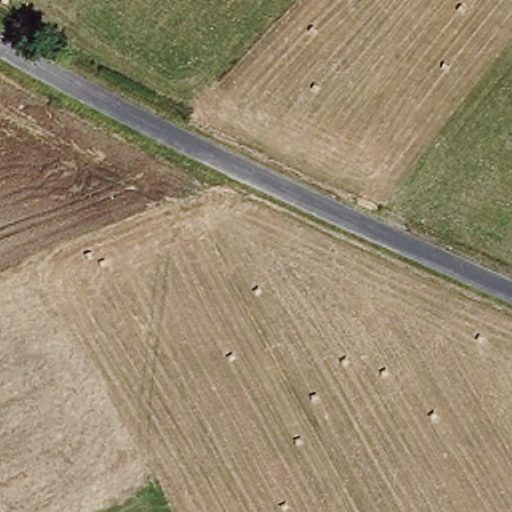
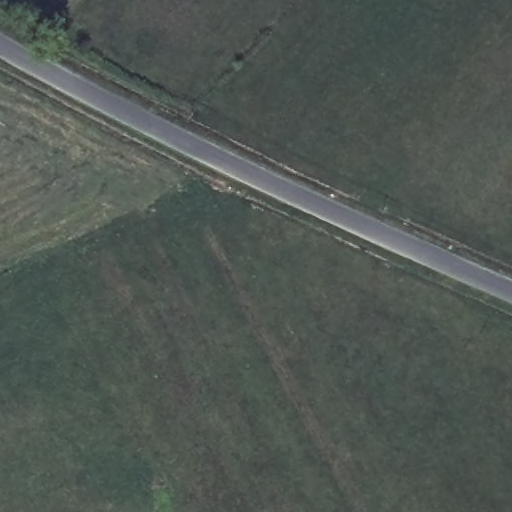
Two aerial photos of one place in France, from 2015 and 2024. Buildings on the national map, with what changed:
[]

